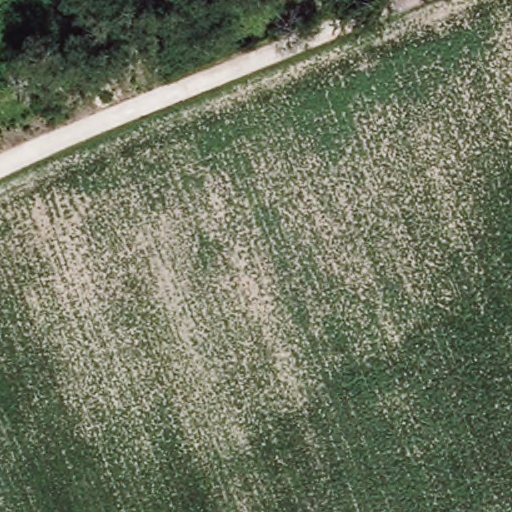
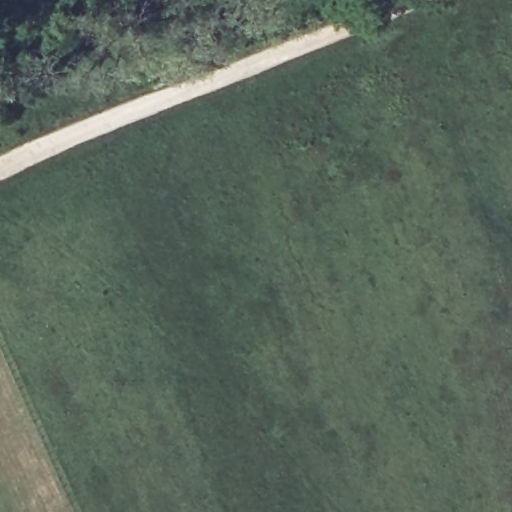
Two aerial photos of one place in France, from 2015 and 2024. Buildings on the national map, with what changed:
[]

